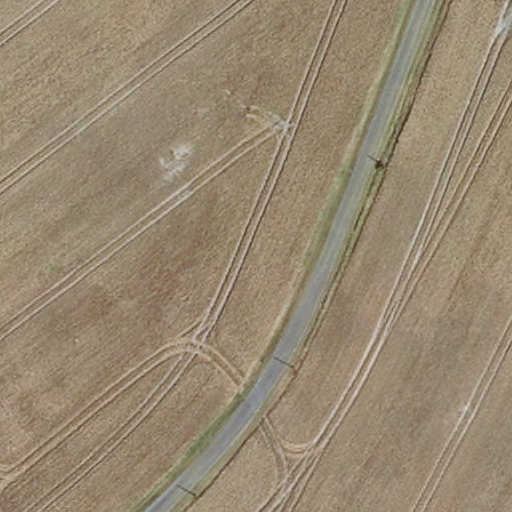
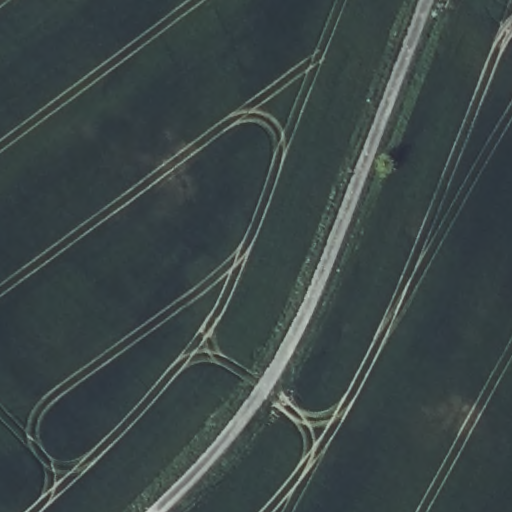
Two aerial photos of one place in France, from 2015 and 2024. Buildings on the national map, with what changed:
[]

